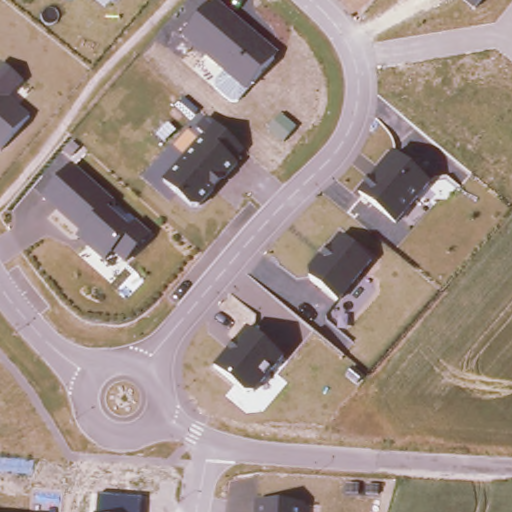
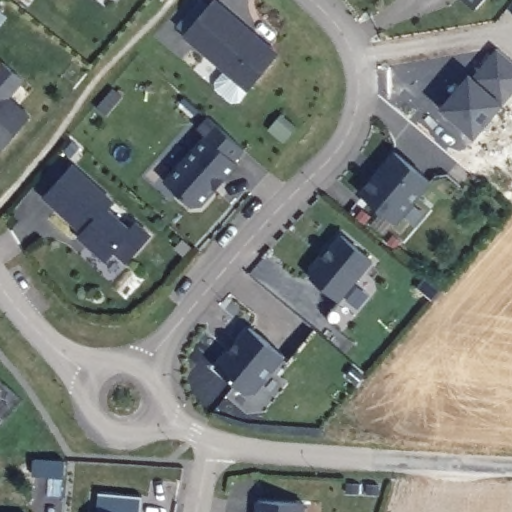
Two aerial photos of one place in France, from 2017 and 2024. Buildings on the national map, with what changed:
unchanged [(213,0),(216,0),(280,55),(246,93),(182,36),(213,0)]
unchanged [(461,0),(485,0),(475,12),(461,0)]
new [(439,109),(469,72),(473,76),(496,48),(512,62),(512,93),(503,102),(474,139),(439,109)]
unchanged [(10,100),(31,118),(0,154),(0,65),(1,63),(25,84),(10,100)]
unchanged [(204,136),(196,129),(207,116),(245,149),(236,161),(240,165),(202,206),(192,208),(163,182),(204,136)]
unchanged [(432,183),(396,225),(359,193),(393,151),(432,183)]
unchanged [(73,166),(115,204),(110,209),(129,227),(135,221),(151,236),(125,265),(114,254),(105,264),(78,238),(81,234),(42,198),(73,166)]
unchanged [(372,262),(337,302),(309,278),(310,268),(340,235),(372,262)]
unchanged [(285,358),(256,393),(246,396),(215,368),(247,327),(285,358)]
unchanged [(98,494),(141,498),(140,512),(96,512),(98,494)]
unchanged [(305,503),(304,512),(255,512),(256,500),(305,503)]

